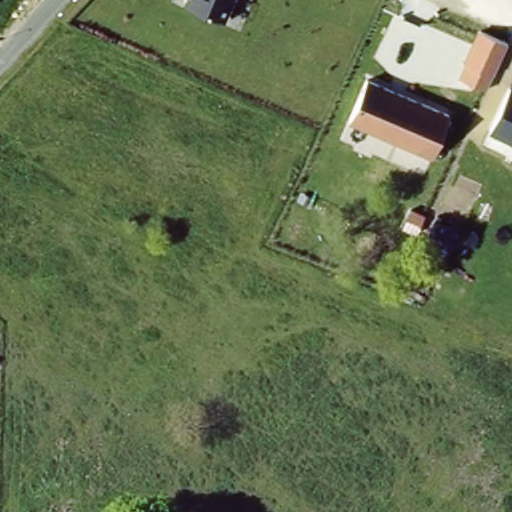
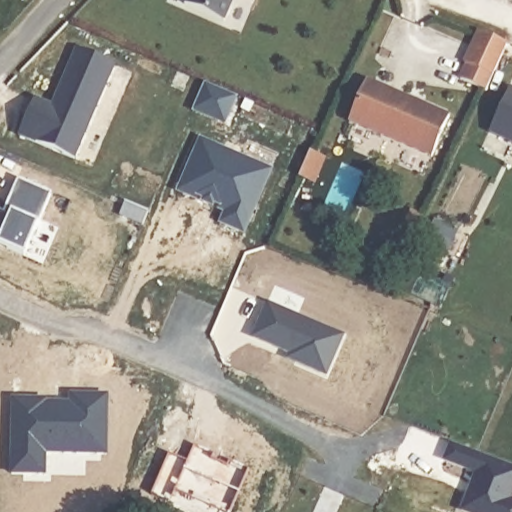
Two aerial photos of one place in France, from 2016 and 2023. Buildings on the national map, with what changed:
unchanged [(183,2),(183,0),(232,0),(223,21),(183,2)]
unchanged [(457,76),(478,28),(508,41),(485,88),(457,76)]
new [(64,43),(119,68),(78,163),(23,138),(64,43)]
unchanged [(368,79),(451,114),(432,156),(348,124),(368,79)]
new [(221,125),(213,122),(196,114),(209,85),(227,93),(234,96),(221,125)]
unchanged [(512,87),(512,142),(489,132),(511,87),(512,87)]
new [(201,136),(271,167),(242,232),(221,223),(223,217),(214,213),(216,210),(195,200),(193,204),(174,195),(201,136)]
new [(128,202),(152,212),(146,226),(123,216),(128,202)]
new [(440,221),(462,233),(448,260),(426,249),(440,221)]
new [(255,333),(271,299),(345,332),(327,372),(297,359),(289,355),(293,350),(255,333)]
new [(46,446),(45,468),(13,467),(15,392),(47,393),(46,396),(80,397),(81,389),(107,390),(105,449),(46,446)]
new [(512,470),(512,498),(509,505),(512,506),(512,512),(466,512),(481,477),(449,464),(457,447),(512,470)]

